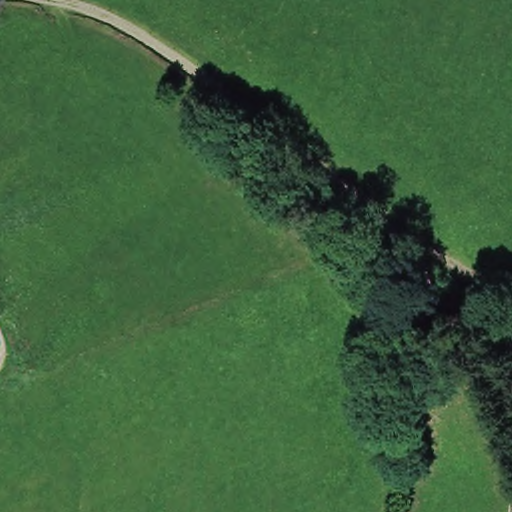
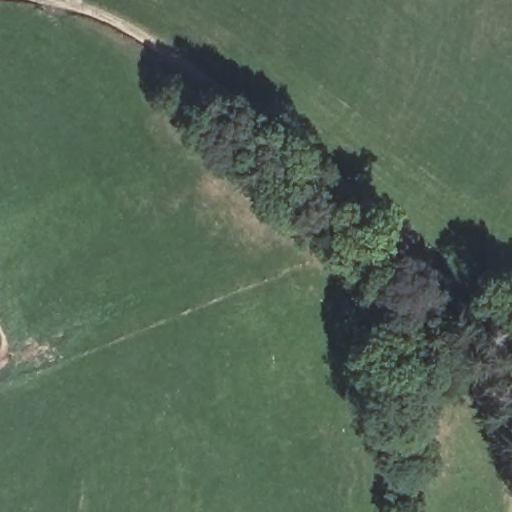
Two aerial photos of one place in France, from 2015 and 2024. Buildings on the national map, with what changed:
[]

